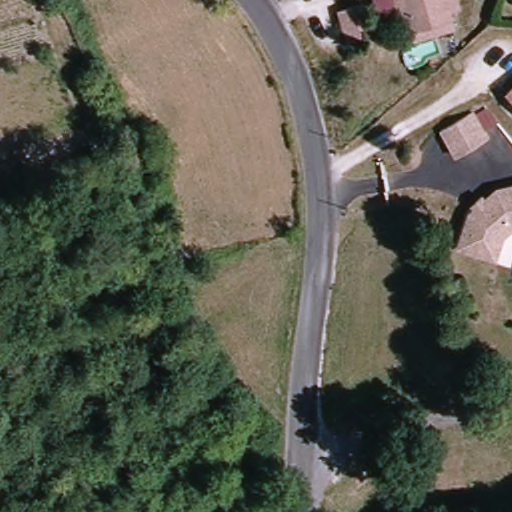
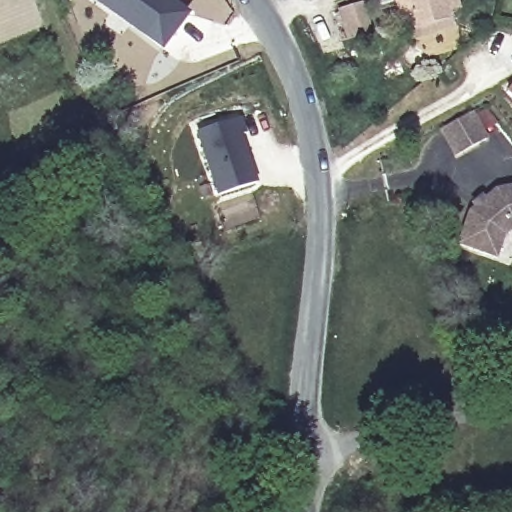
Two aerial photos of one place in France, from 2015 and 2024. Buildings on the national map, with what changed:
new [(157,49),(100,3),(97,0),(165,0),(184,15),(157,49)]
unchanged [(407,16),(401,16),(384,19),(381,0),(458,0),(461,20),(451,21),(451,28),(453,38),(410,43),(407,16)]
unchanged [(347,15),(351,14),(352,14),(371,11),(375,41),(361,44),(356,44),(351,45),(347,15)]
unchanged [(505,94),(512,87),(512,100),(505,94)]
new [(242,113),(260,181),(217,194),(197,129),(242,113)]
unchanged [(491,142),(461,160),(445,134),(475,116),(491,142)]
unchanged [(506,237),(499,260),(462,248),(472,216),(478,211),(475,208),(483,200),(486,204),(498,193),(512,190),(512,232),(506,237)]
new [(252,200),(258,217),(229,228),(224,215),(252,200)]

